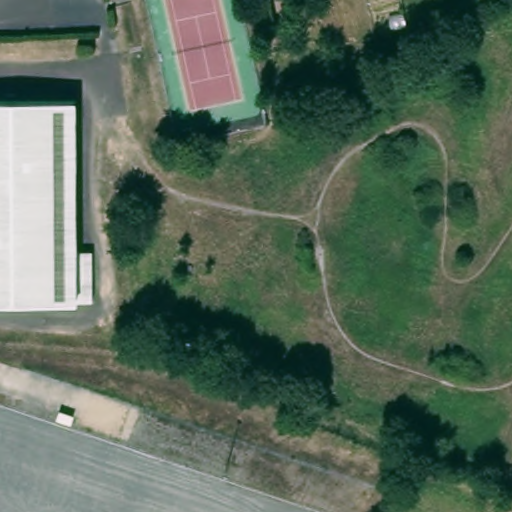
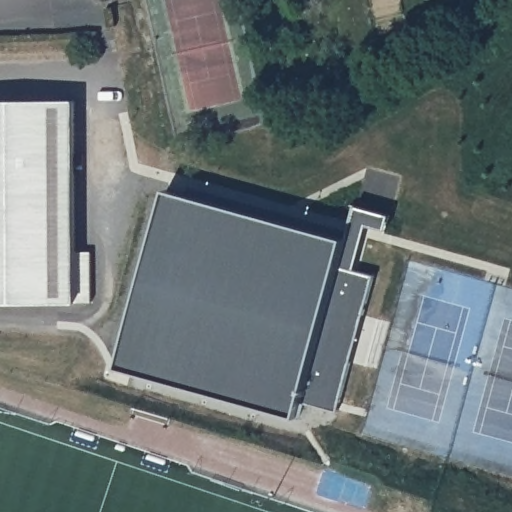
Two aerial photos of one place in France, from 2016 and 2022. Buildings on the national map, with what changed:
unchanged [(71,251),(87,251),(88,301),(72,301),(72,302),(0,302),(0,101),(70,101),(71,251)]
new [(336,412),(300,401),(297,415),(118,366),(168,189),(345,239),(357,206),(389,216),(387,227),(366,224),(354,271),(373,275),(336,412)]
unchanged [(63,406),(77,411),(74,417),(61,412),(63,406)]

